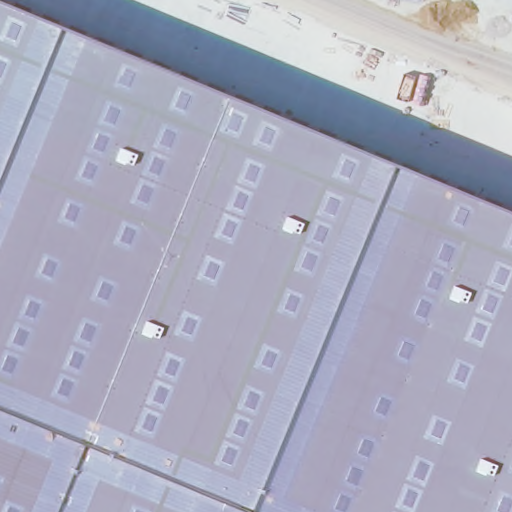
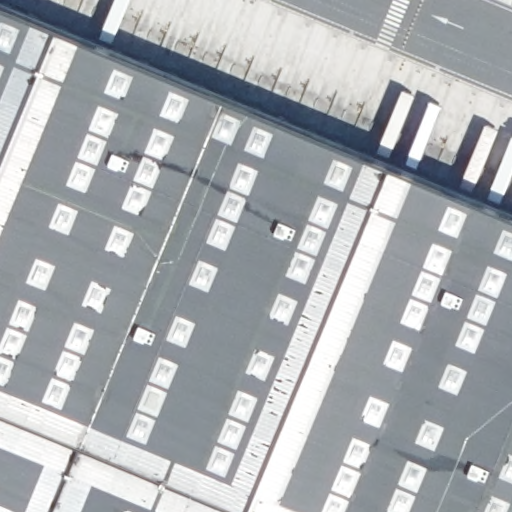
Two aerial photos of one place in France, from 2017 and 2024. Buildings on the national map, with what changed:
unchanged [(512,213),(512,512),(0,512),(0,2),(512,213)]

